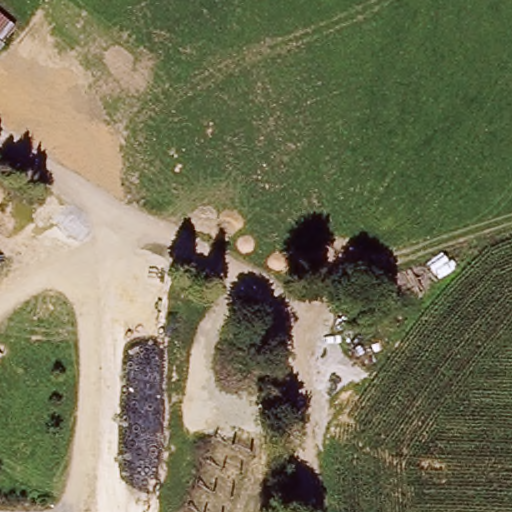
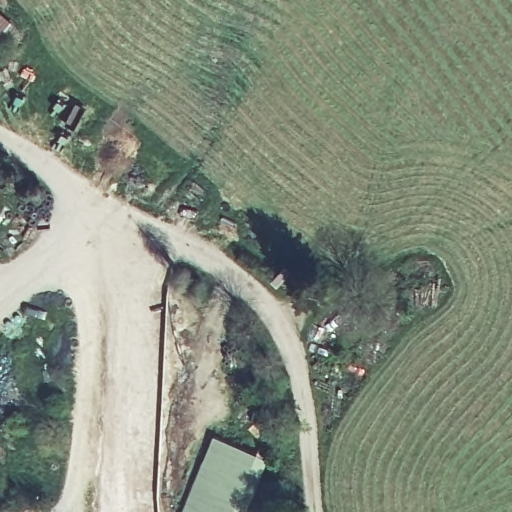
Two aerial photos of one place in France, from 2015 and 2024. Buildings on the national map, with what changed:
unchanged [(12,28),(0,40),(0,17),(12,28)]
new [(266,461),(246,512),(184,512),(214,438),(266,461)]

